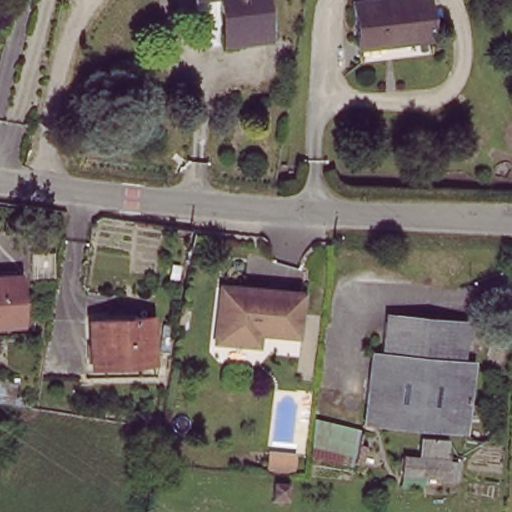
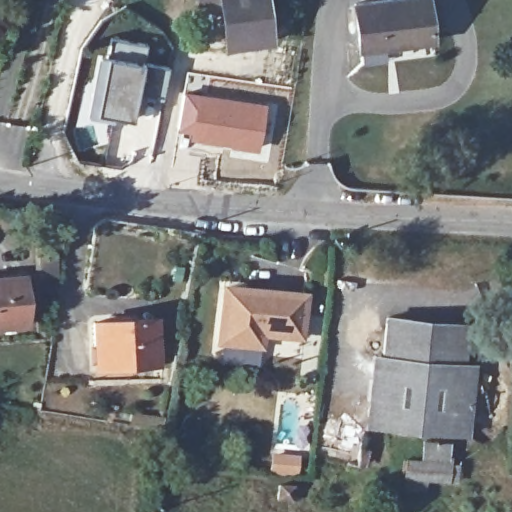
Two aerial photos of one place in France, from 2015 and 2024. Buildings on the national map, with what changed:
unchanged [(270,24),(272,39),(230,44),(223,0),(267,0),(270,24)]
unchanged [(355,3),(377,0),(427,0),(432,39),(361,47),(355,3)]
new [(97,117),(84,115),(96,51),(107,53),(111,36),(148,43),(144,62),(134,121),(97,117)]
new [(183,90),(266,102),(258,151),(190,139),(191,134),(177,132),(183,90)]
new [(97,122),(103,144),(78,151),(75,125),(97,122)]
unchanged [(26,326),(0,328),(0,279),(22,277),(26,326)]
unchanged [(263,336),(262,347),(218,344),(223,288),(306,295),(303,339),(263,336)]
unchanged [(385,316),(464,323),(464,324),(460,363),(382,355),(385,316)]
unchanged [(152,318),(156,363),(98,366),(94,322),(152,318)]
unchanged [(460,363),(472,365),(463,436),(365,425),(368,399),(372,354),(382,355),(460,363)]
unchanged [(163,426),(163,429),(131,424),(133,412),(165,417),(163,426)]
unchanged [(318,420),(364,432),(357,461),(314,451),(318,420)]
unchanged [(402,475),(404,458),(420,460),(422,440),(447,443),(446,463),(455,463),(453,481),(402,475)]
unchanged [(304,452),(303,466),(280,464),(281,449),(304,452)]
unchanged [(300,481),(299,494),(282,493),(284,480),(300,481)]

